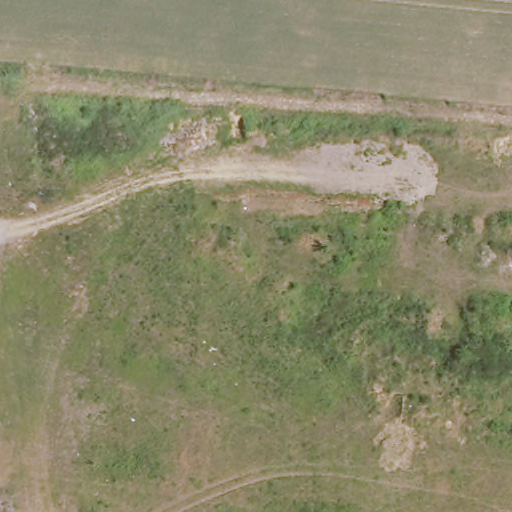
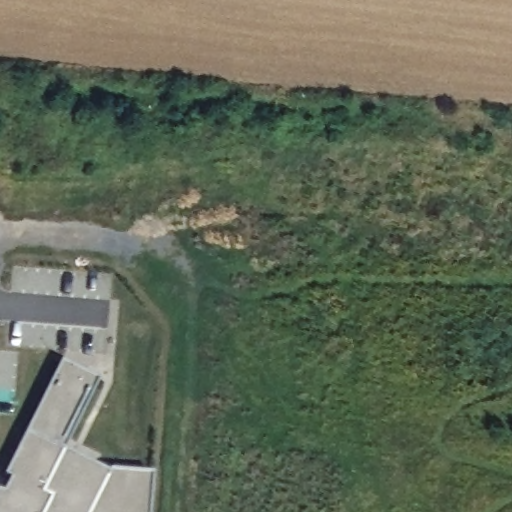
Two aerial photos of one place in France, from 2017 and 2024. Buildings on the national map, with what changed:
new [(148,512),(0,512),(0,504),(1,504),(8,491),(2,488),(60,373),(99,392),(62,463),(104,488),(107,487),(150,491),(148,512)]

